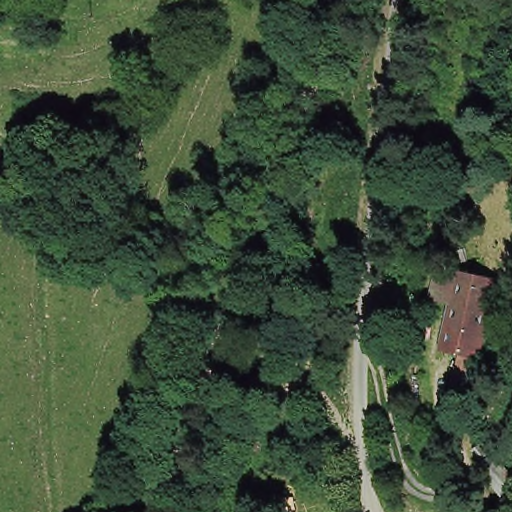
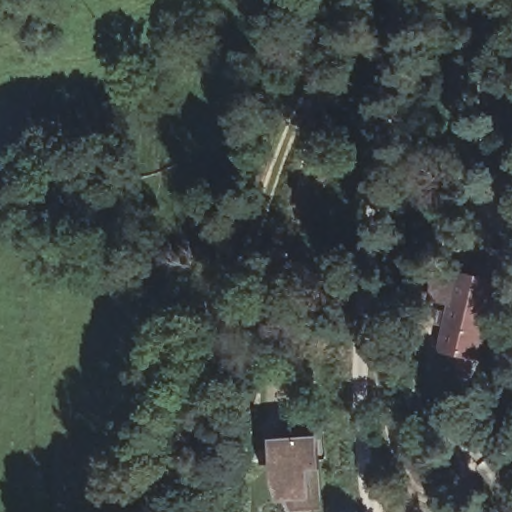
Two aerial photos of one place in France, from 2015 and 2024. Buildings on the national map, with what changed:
unchanged [(487,350),(452,343),(460,301),(442,296),(448,265),(502,275),(487,350)]
new [(324,436),(325,471),(316,472),(318,502),(289,506),(281,484),(277,438),(324,436)]

